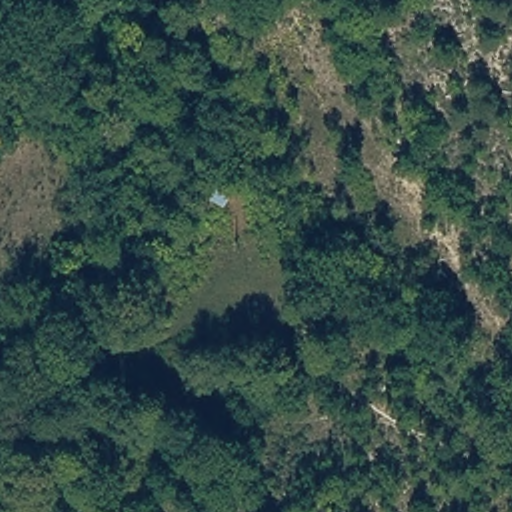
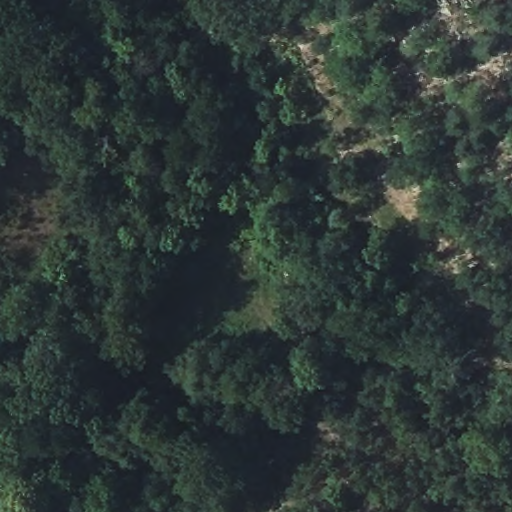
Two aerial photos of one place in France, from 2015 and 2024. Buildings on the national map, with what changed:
unchanged [(238,198),(227,217),(209,207),(220,188),(238,198)]

